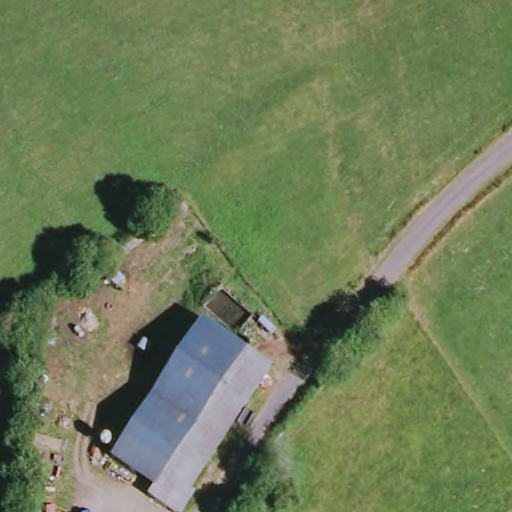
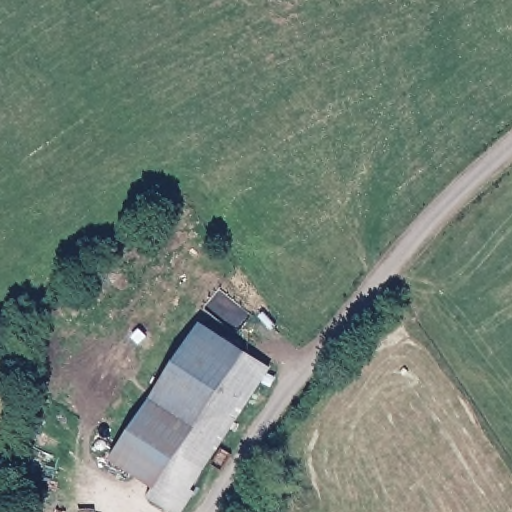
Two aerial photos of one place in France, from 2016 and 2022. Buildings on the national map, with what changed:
unchanged [(160,488),(118,460),(208,323),(250,351),(160,488)]
unchanged [(193,512),(177,512),(155,496),(160,488),(250,351),(275,369),(196,491),(203,495),(193,512)]

